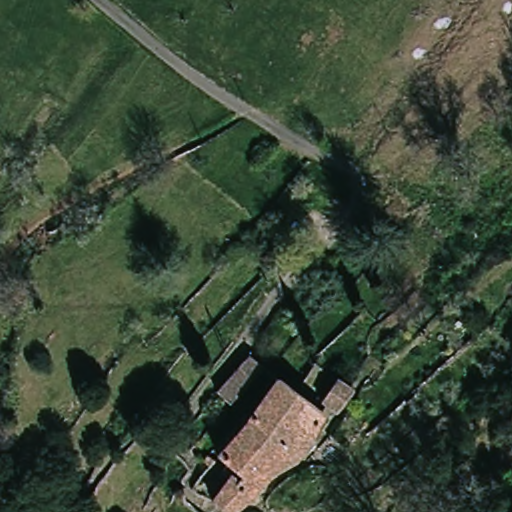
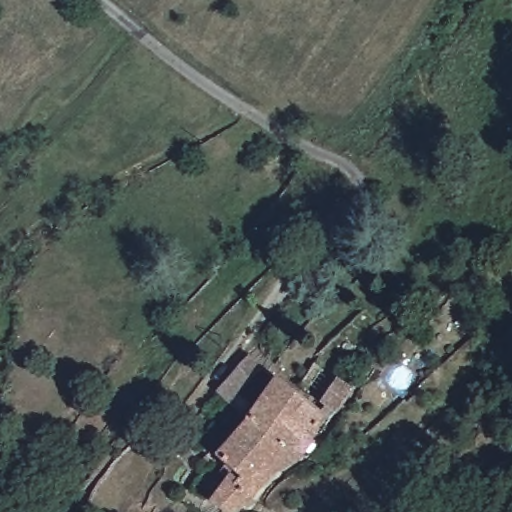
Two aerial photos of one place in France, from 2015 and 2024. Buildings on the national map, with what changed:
unchanged [(215,394),(232,377),(251,361),(265,371),(249,389),(232,408),(215,394)]
unchanged [(327,414),(314,435),(265,400),(279,379),(327,414)]
unchanged [(342,412),(327,401),(340,381),(355,390),(342,412)]
unchanged [(314,435),(318,438),(299,458),(249,423),(265,400),(314,435)]
unchanged [(299,458),(274,477),(240,512),(234,512),(214,501),(236,475),(217,459),(249,423),(299,458)]

